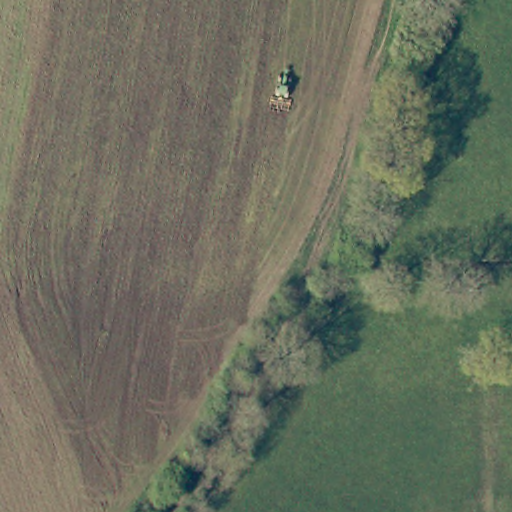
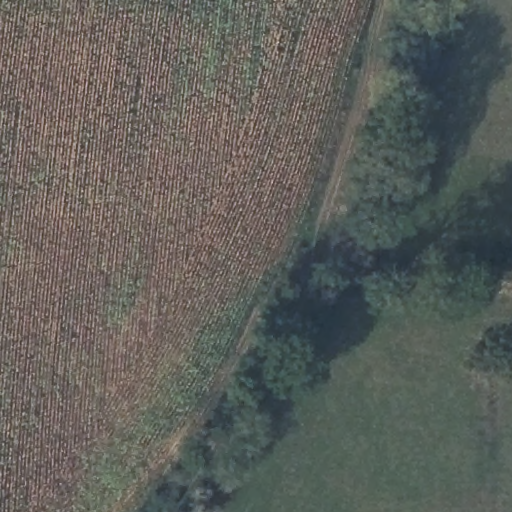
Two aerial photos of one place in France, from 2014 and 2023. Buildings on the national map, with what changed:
[]

